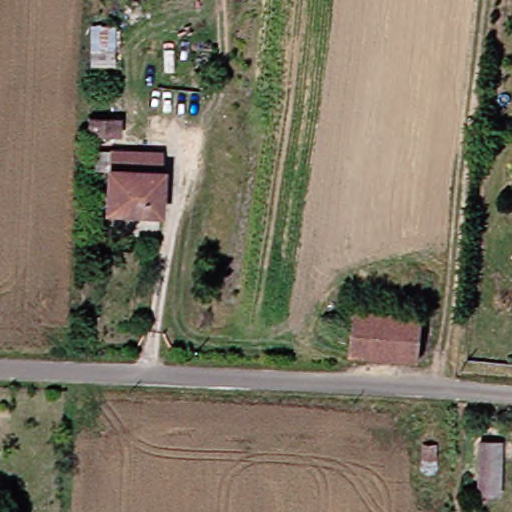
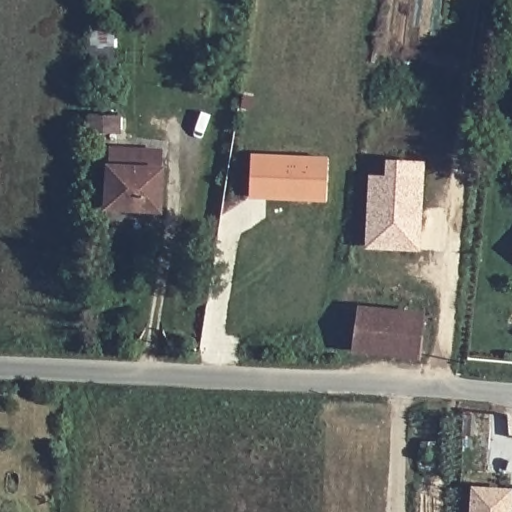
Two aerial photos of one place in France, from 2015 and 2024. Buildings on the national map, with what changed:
unchanged [(117,22),(117,0),(133,0),(133,21),(123,21),(124,64),(99,65),(99,22),(117,22)]
unchanged [(126,129),(96,128),(96,112),(126,113),(126,129)]
unchanged [(114,205),(116,163),(117,145),(170,147),(169,165),(168,207),(114,205)]
new [(251,153),(327,157),(325,202),(250,199),(251,153)]
new [(369,176),(384,176),(386,160),(425,162),(421,252),(365,249),(369,176)]
unchanged [(431,357),(361,352),(362,342),(352,341),(355,311),(434,318),(431,357)]
demolished [(507,491),(488,490),(489,442),(508,443),(507,491)]
unchanged [(434,457),(421,456),(422,443),(434,443),(434,457)]
new [(510,491),(510,496),(512,496),(512,512),(471,512),(473,489),(510,491)]

